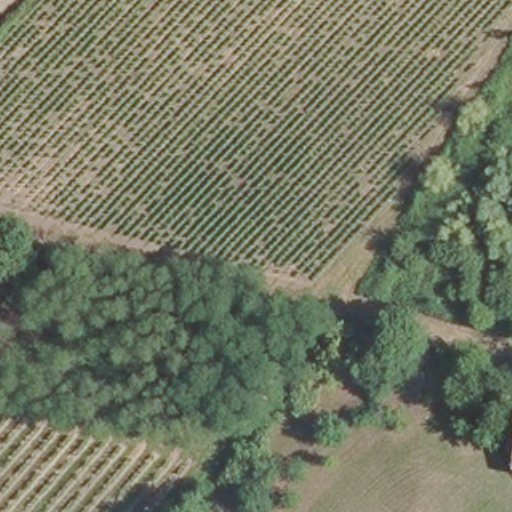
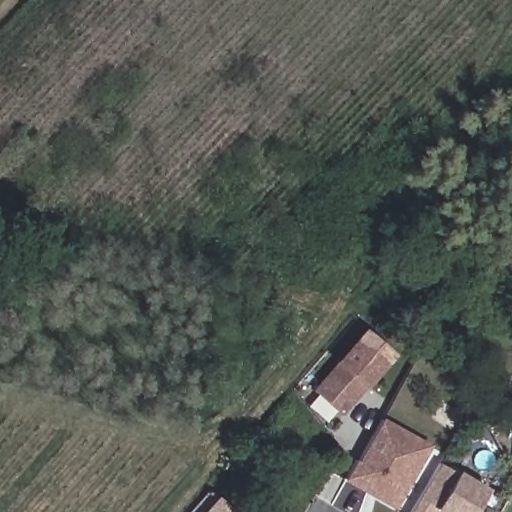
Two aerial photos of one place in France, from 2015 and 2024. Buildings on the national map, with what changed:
new [(364,330),(393,356),(343,415),(312,389),(364,330)]
unchanged [(508,425),(512,397),(512,426),(508,425)]
new [(396,510),(346,483),(382,418),(433,445),(396,510)]
new [(458,470),(487,488),(473,512),(439,512),(436,510),(434,512),(410,512),(439,463),(458,470)]
new [(235,512),(203,512),(217,495),(235,512)]

